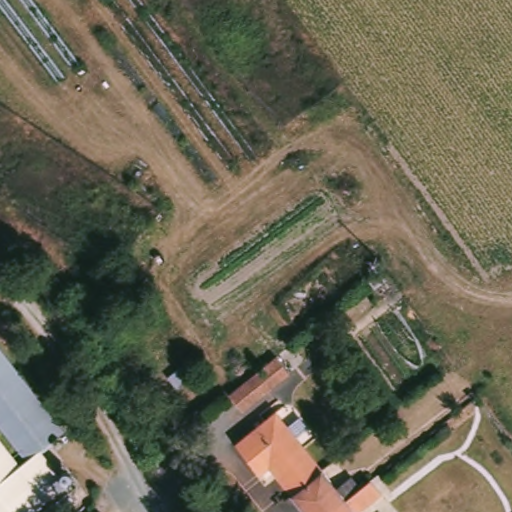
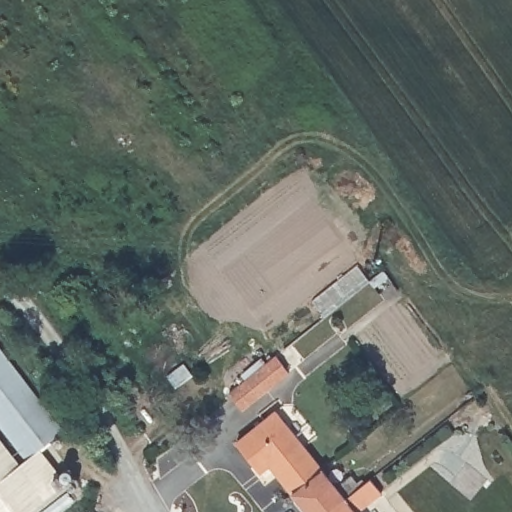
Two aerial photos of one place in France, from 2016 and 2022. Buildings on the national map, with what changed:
unchanged [(293,347),(303,365),(244,409),(231,392),(293,347)]
unchanged [(22,471),(32,463),(0,423),(0,348),(67,436),(43,455),(69,488),(38,512),(0,512),(0,443),(22,471)]
unchanged [(277,408),(323,466),(292,491),(270,463),(262,470),(237,440),(277,408)]
unchanged [(346,495),(325,512),(309,512),(292,491),(323,466),(346,495)]
unchanged [(357,510),(359,512),(325,512),(346,495),(357,510)]

